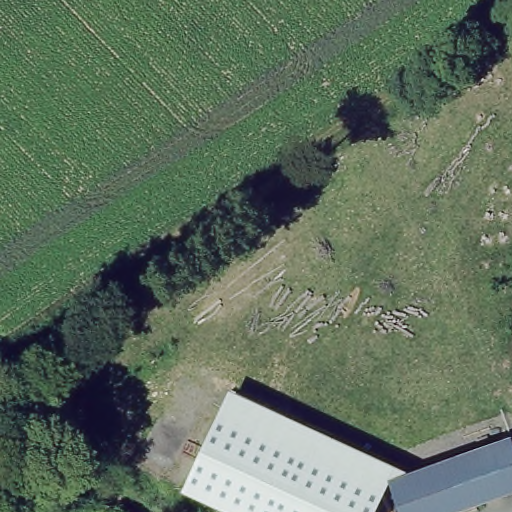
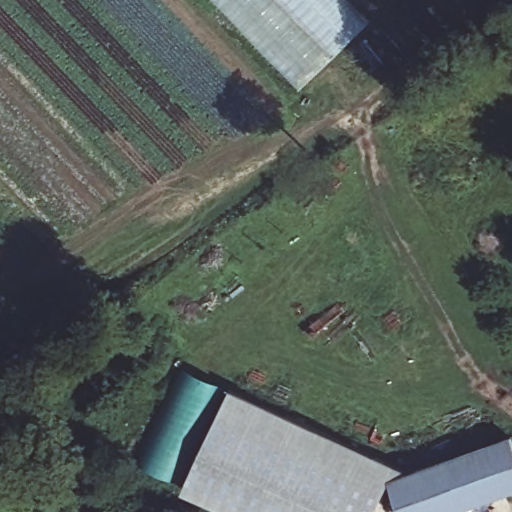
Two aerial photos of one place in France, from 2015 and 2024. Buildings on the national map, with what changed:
new [(211,0),(348,0),(370,22),(300,91),(211,0)]
new [(184,367),(222,385),(178,479),(140,461),(184,367)]
unchanged [(407,468),(391,474),(393,480),(378,512),(232,512),(185,490),(232,389),(407,468)]
unchanged [(510,432),(512,437),(512,485),(434,512),(403,512),(391,474),(510,432)]

